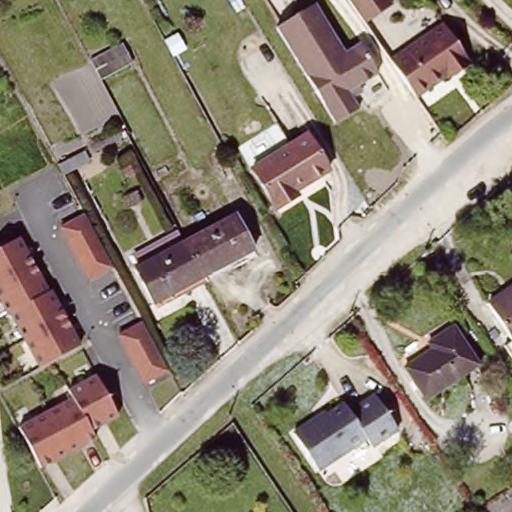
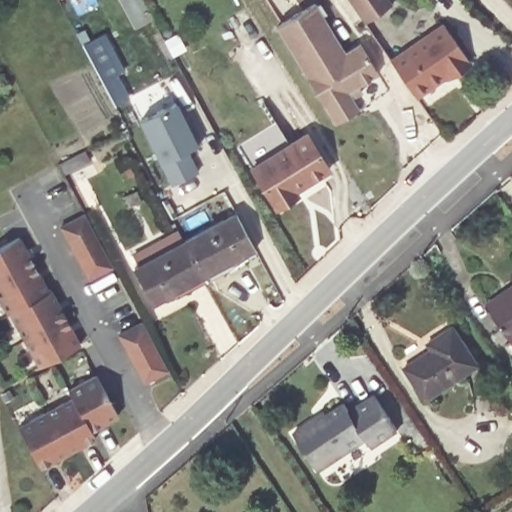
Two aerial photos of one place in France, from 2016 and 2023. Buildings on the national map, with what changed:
unchanged [(385,5),(360,25),(343,0),(381,0),(385,5)]
unchanged [(345,97),(352,109),(330,122),(271,26),(309,3),(338,52),(352,44),(370,74),(352,86),(355,91),(345,97)]
unchanged [(470,64),(417,102),(392,64),(445,27),(470,64)]
new [(160,163),(140,119),(178,102),(185,118),(189,115),(202,141),(197,143),(187,148),(199,171),(171,184),(160,163)]
unchanged [(332,171),(296,193),(299,197),(278,210),(252,168),(307,134),(332,171)]
unchanged [(112,268),(87,280),(59,222),(82,210),(112,268)]
unchanged [(243,256),(247,263),(205,285),(180,239),(232,212),(252,251),(243,256)]
unchanged [(37,366),(0,297),(0,247),(19,237),(80,342),(37,366)]
unchanged [(128,266),(180,239),(205,285),(165,307),(162,300),(149,306),(128,266)]
unchanged [(490,306),(512,292),(512,339),(490,306)]
unchanged [(169,369),(145,381),(117,330),(140,319),(169,369)]
unchanged [(481,364),(427,400),(405,366),(434,347),(430,342),(455,325),(481,364)]
unchanged [(71,395),(67,387),(95,370),(118,412),(91,427),(97,436),(40,464),(18,422),(71,395)]
unchanged [(397,429),(369,446),(364,439),(316,469),(291,432),(342,401),(347,409),(374,393),(397,429)]

